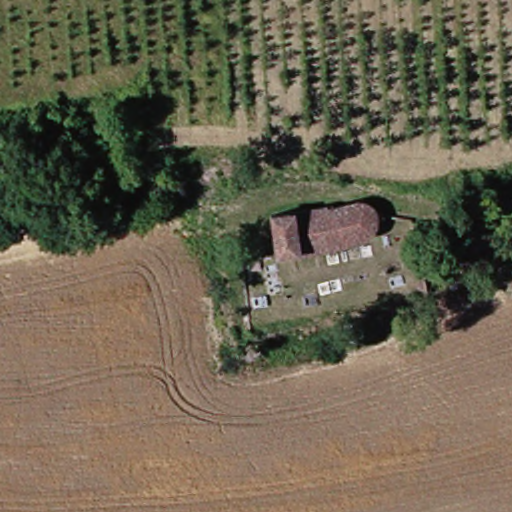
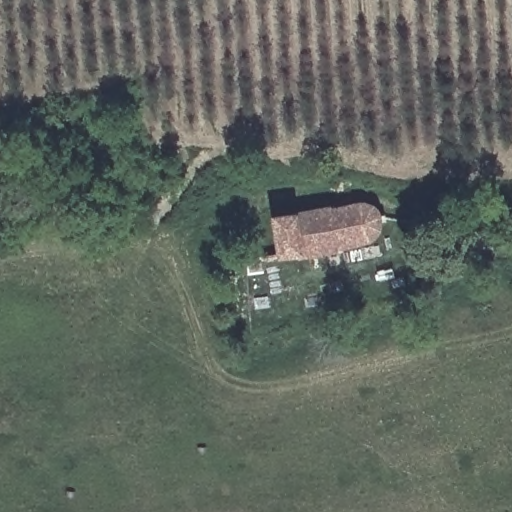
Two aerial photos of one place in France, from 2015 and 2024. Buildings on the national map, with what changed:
unchanged [(282,255),(266,258),(261,220),(348,206),(358,206),(372,206),(378,210),(371,217),(371,226),(365,234),(366,243),(368,254),(351,257),(349,247),(307,253),(309,268),(285,271),(282,255)]

